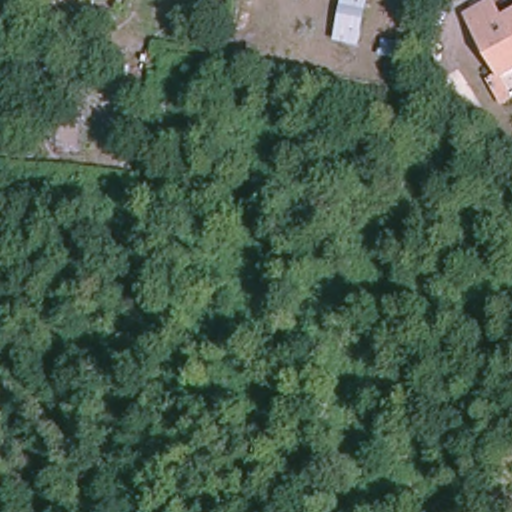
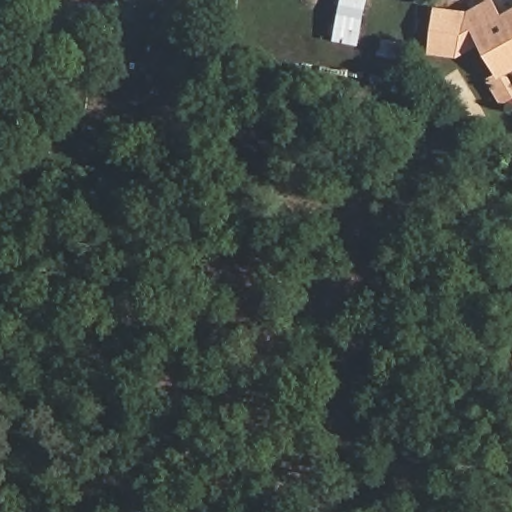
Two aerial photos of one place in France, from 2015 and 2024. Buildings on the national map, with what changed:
unchanged [(360,47),(332,40),(340,0),(366,0),(360,47)]
unchanged [(463,15),(488,0),(489,0),(500,18),(512,10),(512,67),(501,74),(463,15)]
unchanged [(0,41),(0,3),(5,4),(0,41)]
new [(458,58),(430,54),(435,8),(468,12),(463,15),(482,45),(458,58)]

